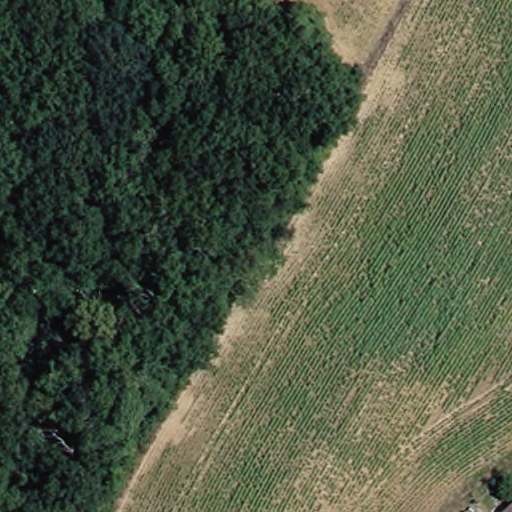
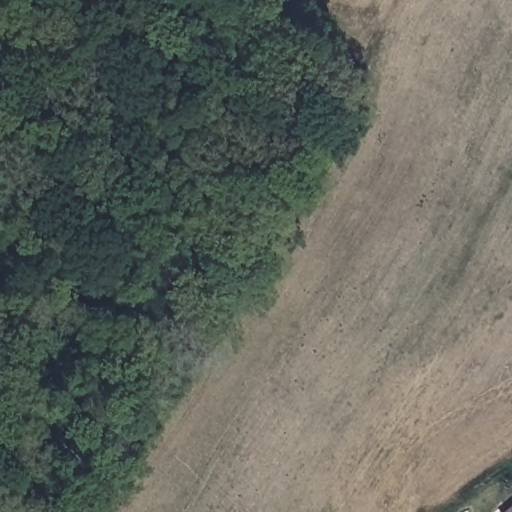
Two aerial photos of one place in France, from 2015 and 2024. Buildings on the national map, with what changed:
unchanged [(512,512),(502,512),(512,504),(512,512)]

